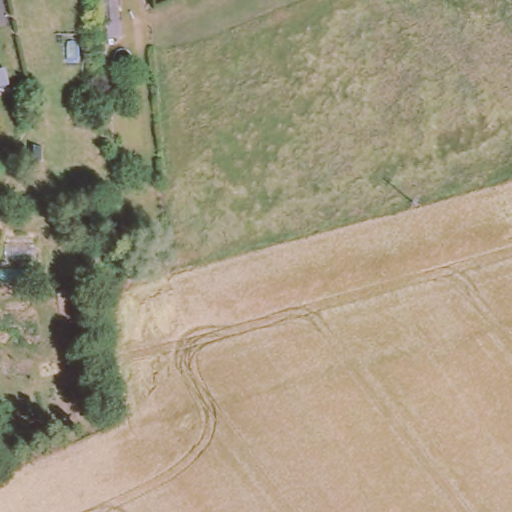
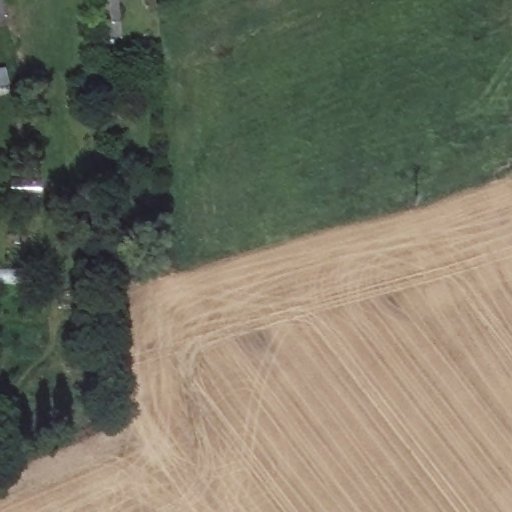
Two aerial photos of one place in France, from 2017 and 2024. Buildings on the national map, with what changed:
unchanged [(117,0),(120,47),(108,48),(107,35),(104,35),(101,0),(117,0)]

